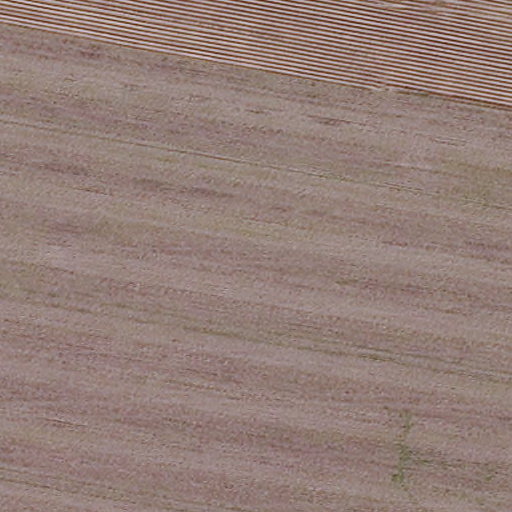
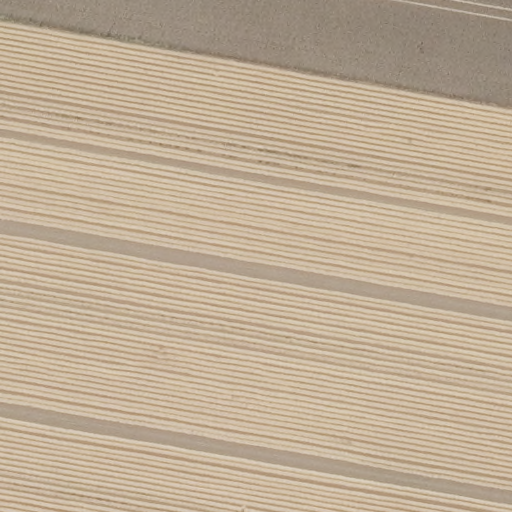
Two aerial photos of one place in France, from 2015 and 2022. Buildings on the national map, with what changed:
[]

